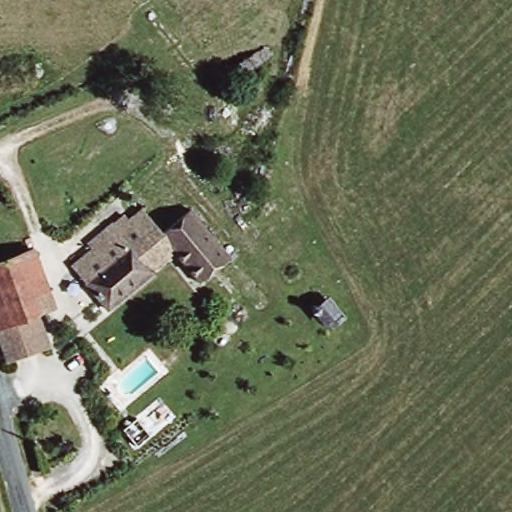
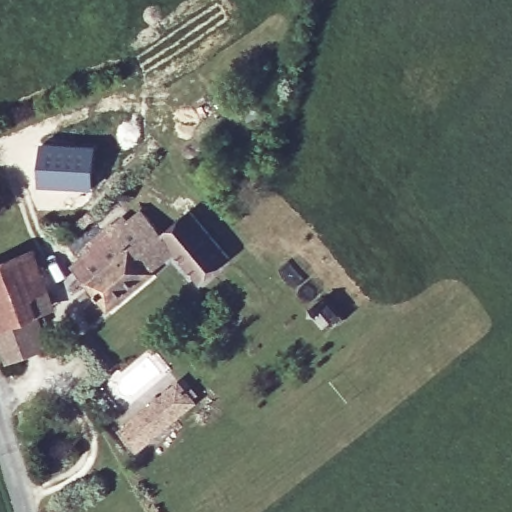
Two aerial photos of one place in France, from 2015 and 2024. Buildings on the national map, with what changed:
new [(42,142),(96,144),(95,189),(39,187),(42,142)]
unchanged [(232,262),(200,287),(162,238),(194,212),(232,262)]
unchanged [(135,249),(154,274),(105,311),(72,268),(92,253),(85,243),(110,225),(117,233),(140,216),(154,235),(135,249)]
unchanged [(40,314),(32,318),(0,332),(0,268),(30,254),(42,277),(55,308),(40,314)]
unchanged [(32,318),(46,347),(12,363),(0,336),(0,332),(32,318)]
new [(119,431),(178,380),(196,404),(136,452),(119,431)]

